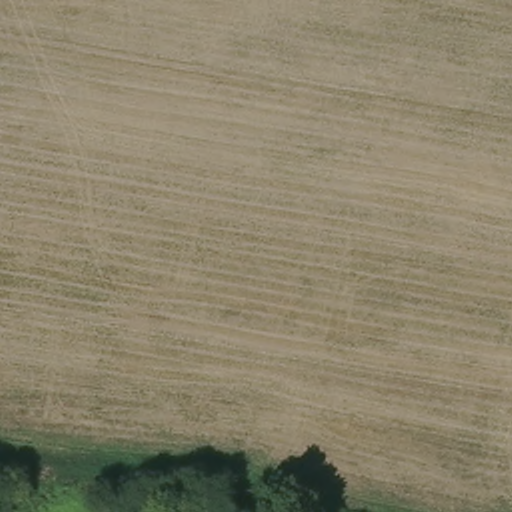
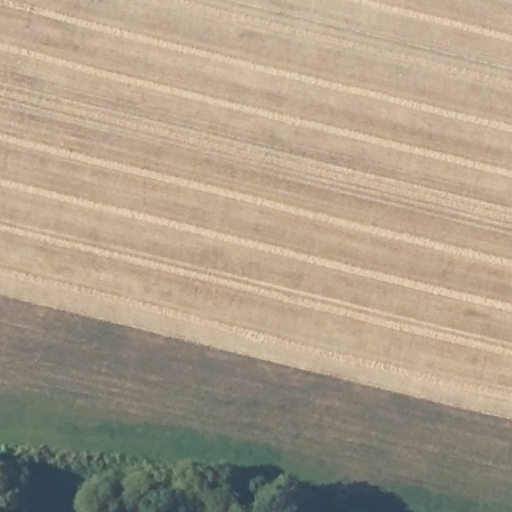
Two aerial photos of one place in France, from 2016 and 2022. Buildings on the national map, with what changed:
[]

